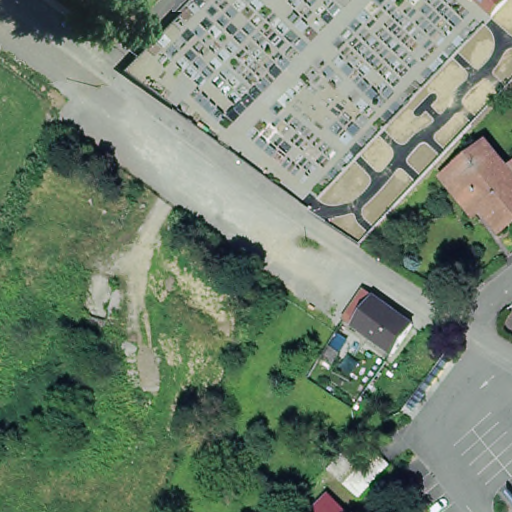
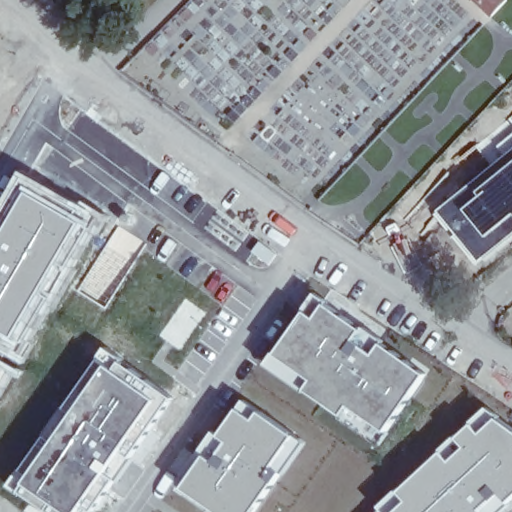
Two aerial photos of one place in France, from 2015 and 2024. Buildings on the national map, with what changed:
unchanged [(508,0),(493,15),(477,0),(508,0)]
unchanged [(512,170),(512,226),(503,234),(486,210),(478,217),(449,178),(490,144),(510,172),(512,170)]
new [(100,214),(36,323),(19,347),(0,335),(0,205),(21,168),(100,214)]
new [(426,365),(375,434),(267,361),(315,289),(426,365)]
demolished [(395,359),(355,331),(346,324),(365,294),(375,302),(415,330),(395,359)]
new [(41,439),(105,346),(174,398),(94,512),(41,512),(5,486),(41,439)]
demolished [(341,353),(333,366),(323,359),(331,347),(341,353)]
new [(0,366),(0,364),(1,364),(0,366)]
new [(307,441),(259,512),(214,512),(177,486),(240,398),(307,441)]
new [(512,429),(512,501),(499,512),(376,512),(480,409),(512,429)]
demolished [(342,488),(328,474),(360,441),(373,454),(342,488)]
demolished [(325,501),(335,512),(314,512),(325,501)]

